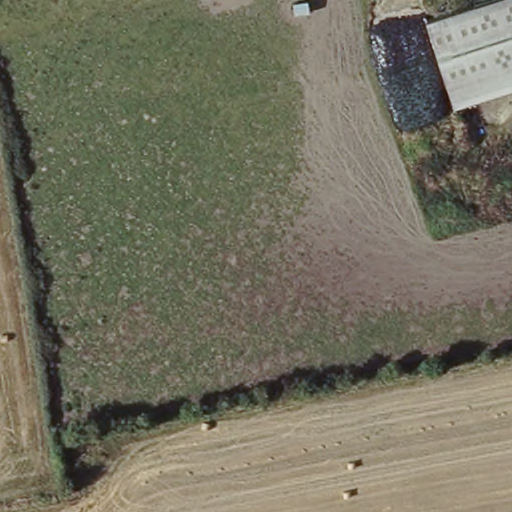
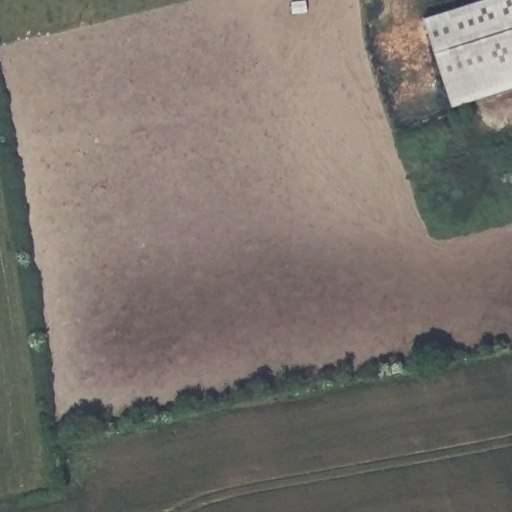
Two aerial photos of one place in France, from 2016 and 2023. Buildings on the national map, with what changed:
unchanged [(482,0),(512,0),(512,88),(452,108),(425,18),(482,0)]

